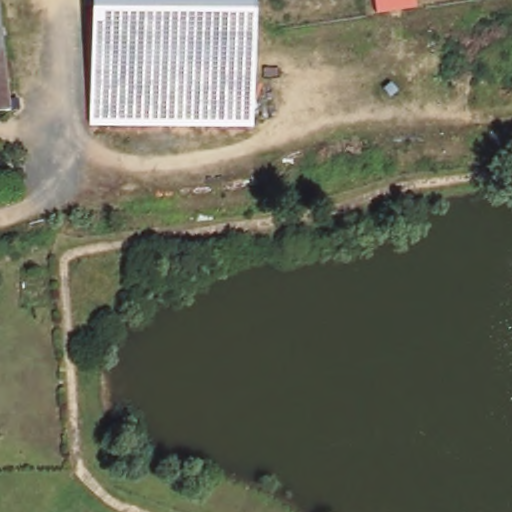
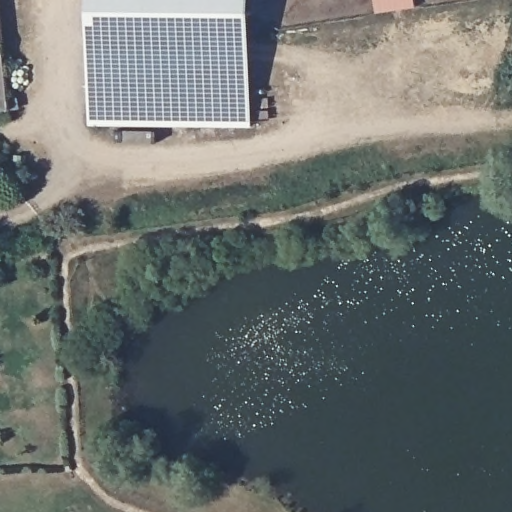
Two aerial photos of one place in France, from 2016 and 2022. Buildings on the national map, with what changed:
unchanged [(89,124),(89,0),(252,0),(250,126),(89,124)]
unchanged [(0,118),(0,99),(1,118),(0,118)]

